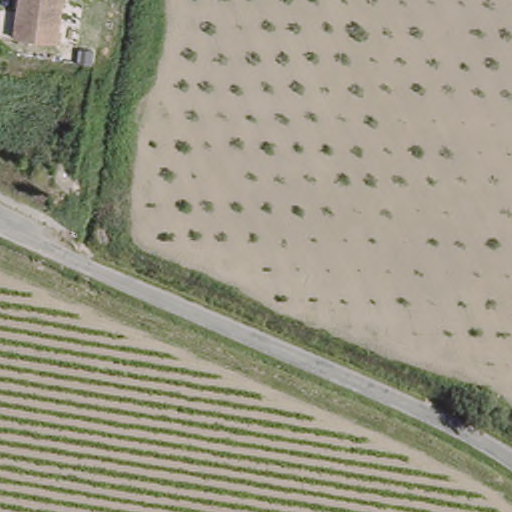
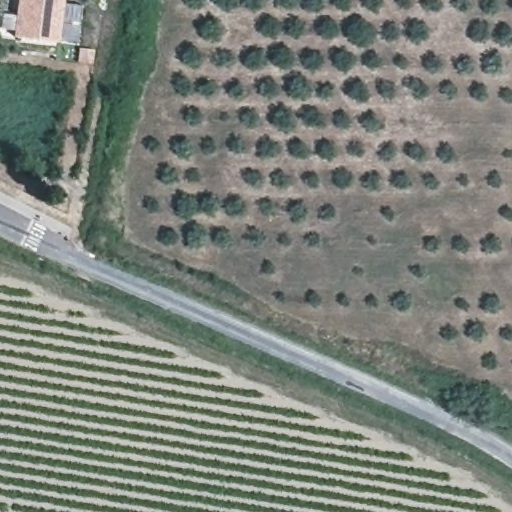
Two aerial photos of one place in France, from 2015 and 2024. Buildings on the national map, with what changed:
unchanged [(11,35),(15,0),(59,0),(53,40),(11,35)]

